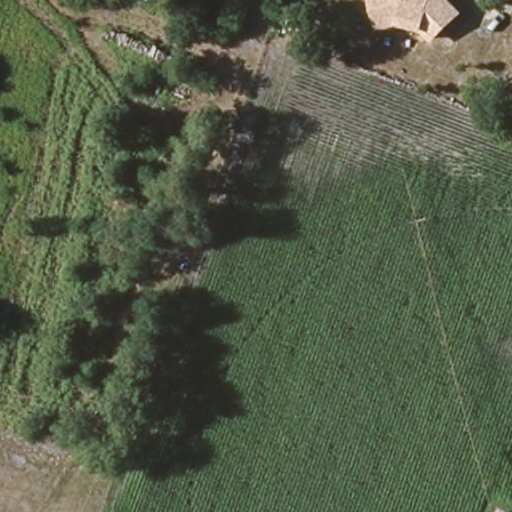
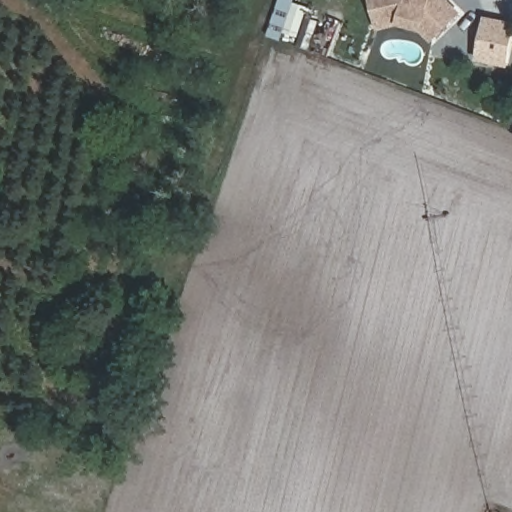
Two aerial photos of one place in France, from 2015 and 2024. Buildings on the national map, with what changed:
unchanged [(419,31),(399,26),(379,31),(372,0),(452,0),(464,12),(432,42),(419,31)]
new [(487,17),(512,23),(512,30),(504,62),(478,55),(487,17)]

